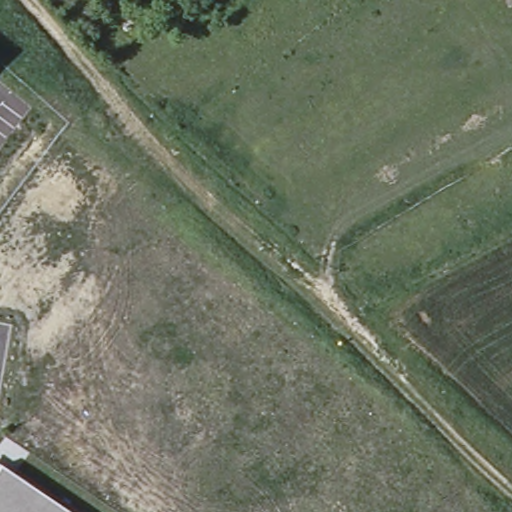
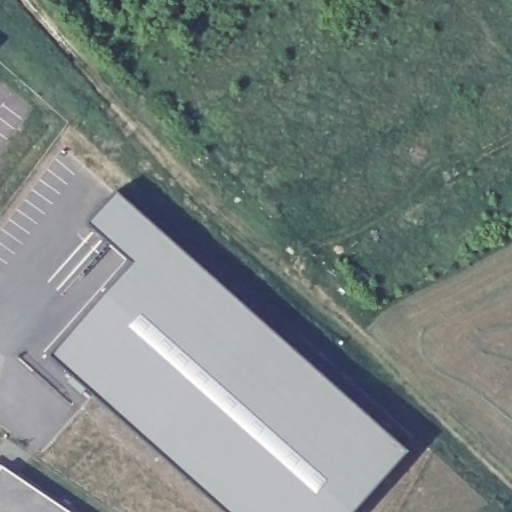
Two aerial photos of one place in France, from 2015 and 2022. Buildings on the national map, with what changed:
new [(353,512),(225,512),(50,354),(133,261),(88,221),(117,190),(409,450),(353,512)]
unchanged [(68,512),(0,512),(0,472),(3,468),(68,512)]

